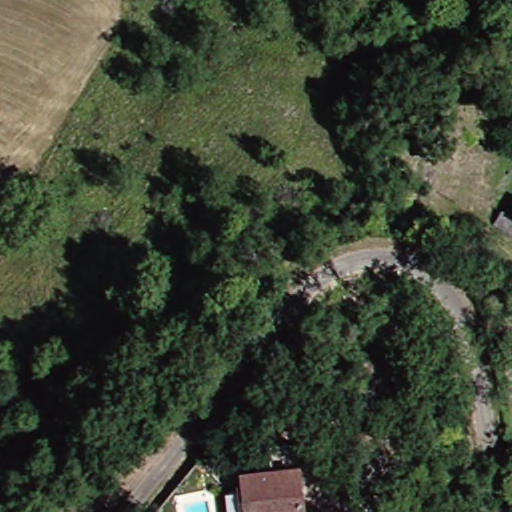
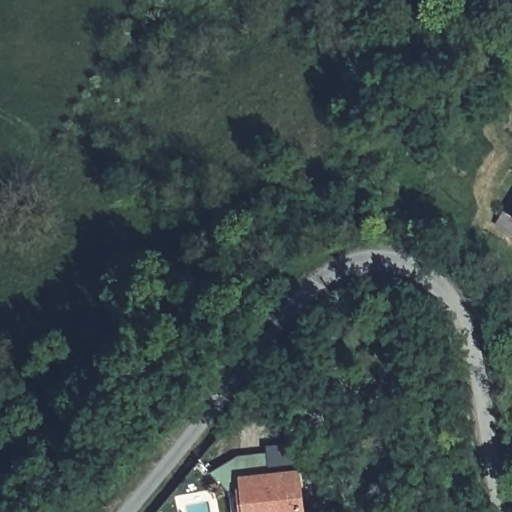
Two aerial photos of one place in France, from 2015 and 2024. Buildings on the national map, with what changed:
unchanged [(512,213),(512,230),(503,225),(512,213)]
unchanged [(255,490),(255,476),(311,475),(312,512),(239,512),(239,490),(255,490)]

